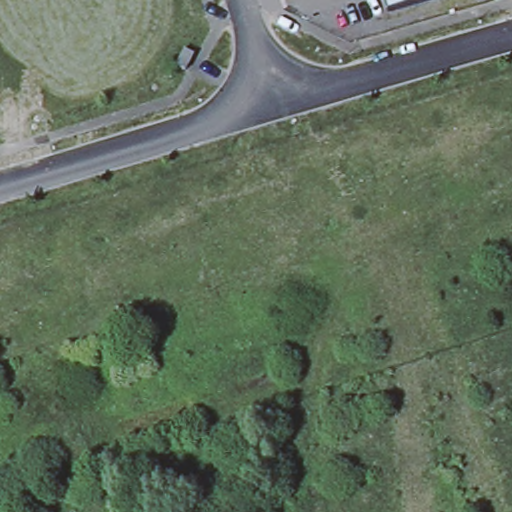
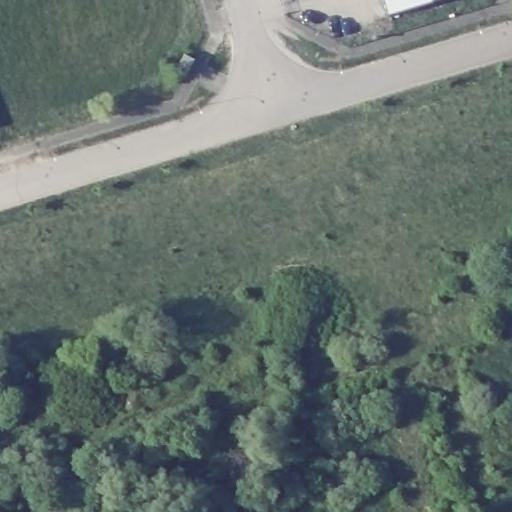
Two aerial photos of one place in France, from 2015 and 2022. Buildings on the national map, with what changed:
unchanged [(392,17),(387,0),(446,0),(392,17)]
unchanged [(185,75),(175,70),(183,54),(193,58),(185,75)]

